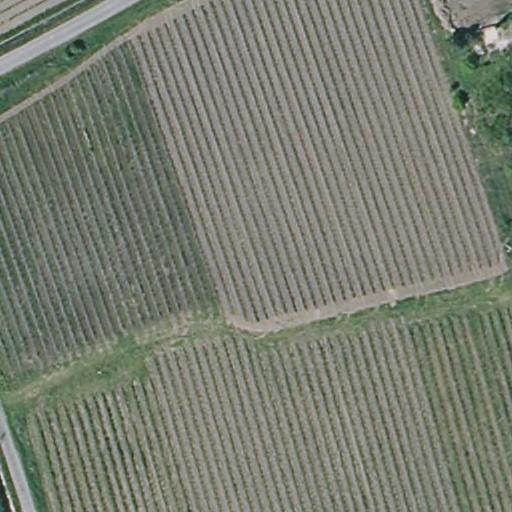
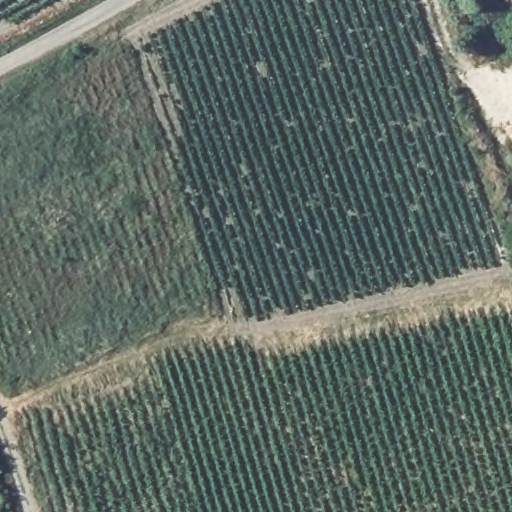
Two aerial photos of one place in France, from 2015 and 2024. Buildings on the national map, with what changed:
unchanged [(512,44),(510,44),(505,31),(512,29),(512,44)]

